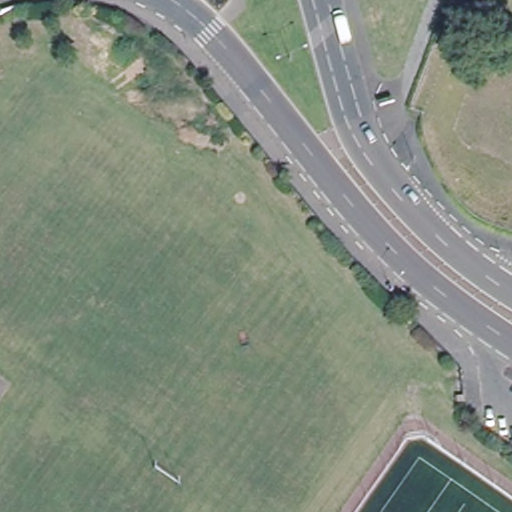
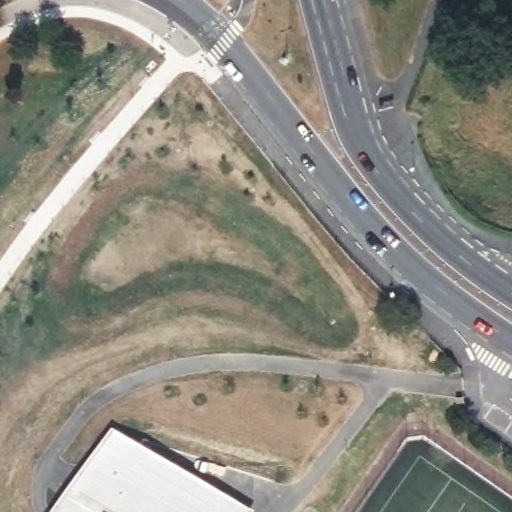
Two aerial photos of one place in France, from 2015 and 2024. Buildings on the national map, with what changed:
new [(112,425),(256,509),(254,512),(48,512),(60,495),(112,425)]

